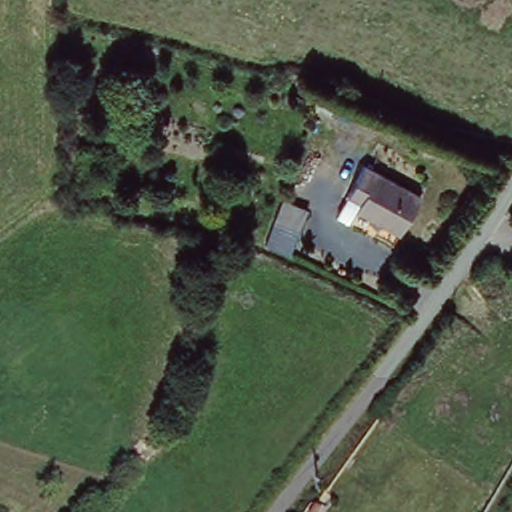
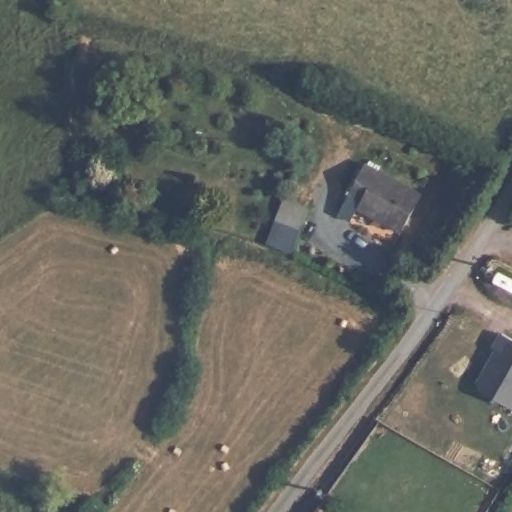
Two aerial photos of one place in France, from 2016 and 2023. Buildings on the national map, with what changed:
unchanged [(417,191),(401,233),(352,215),(347,229),(331,222),(351,166),(417,191)]
unchanged [(308,211),(292,253),(267,244),(283,201),(308,211)]
new [(474,382),(494,349),(490,347),(497,335),(512,342),(512,409),(477,387),(474,382)]

